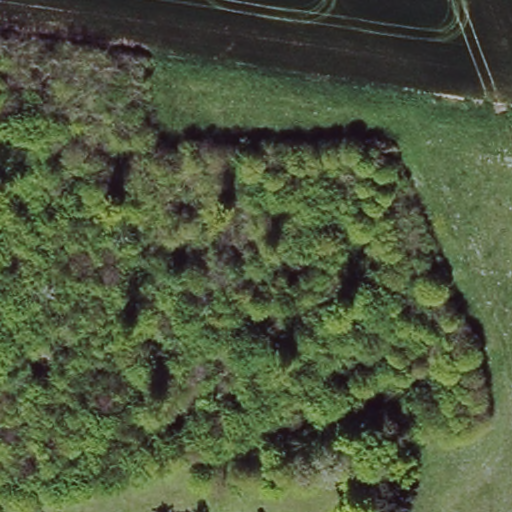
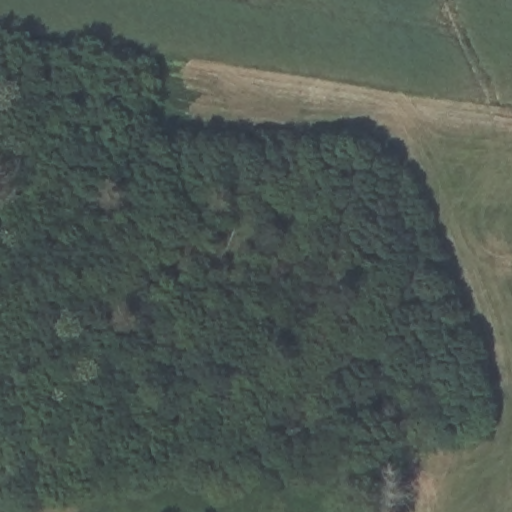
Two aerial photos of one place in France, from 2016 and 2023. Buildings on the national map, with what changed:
[]

